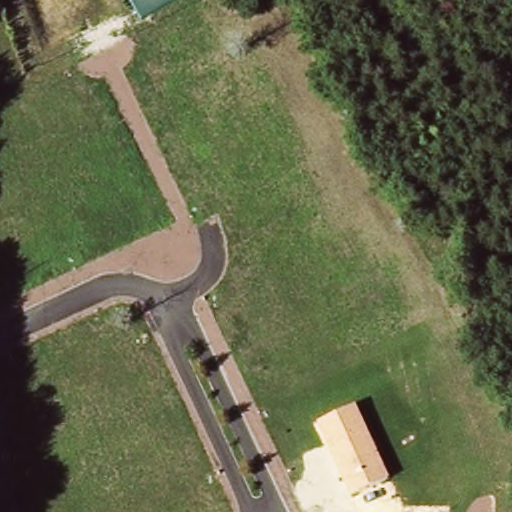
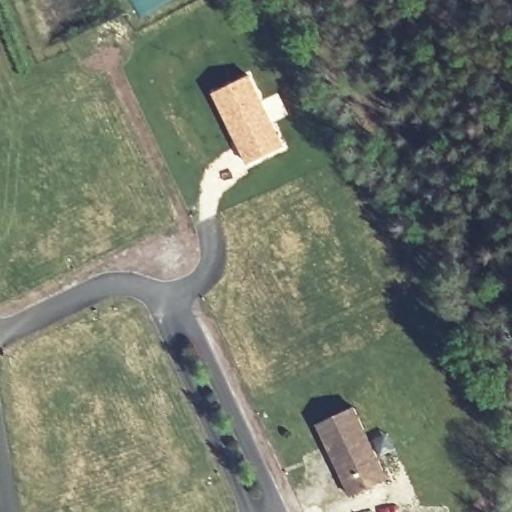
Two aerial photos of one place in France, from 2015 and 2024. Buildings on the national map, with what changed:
new [(250,73),(262,99),(276,91),(288,114),(274,122),(285,147),(245,165),(211,92),(250,73)]
unchanged [(355,405),(389,479),(348,498),(316,426),(355,405)]

